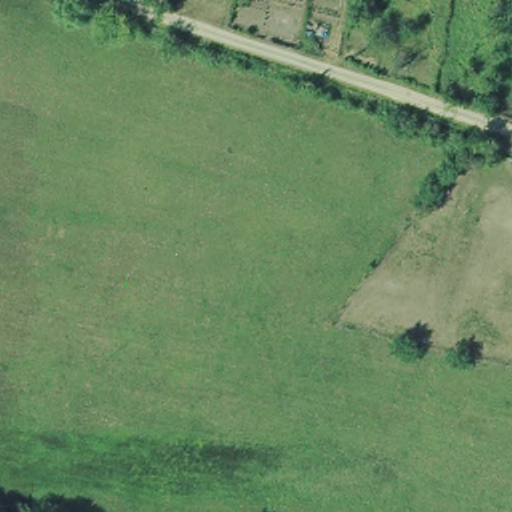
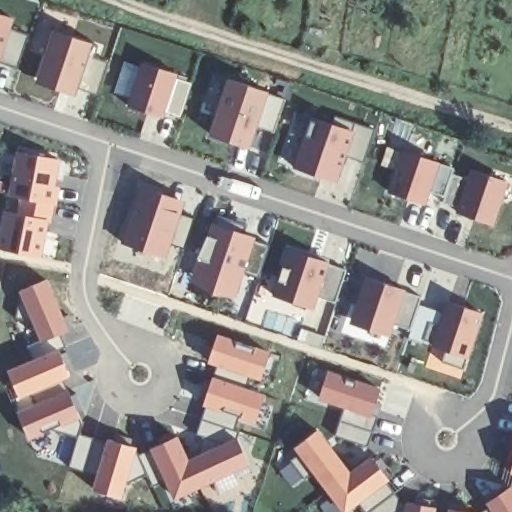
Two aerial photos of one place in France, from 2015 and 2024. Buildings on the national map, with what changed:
new [(9,31),(27,37),(15,73),(0,67),(0,13),(12,17),(9,31)]
new [(97,46),(94,57),(106,61),(94,102),(35,84),(50,31),(97,46)]
new [(176,72),(174,79),(191,83),(180,117),(165,112),(163,119),(127,107),(141,61),(176,72)]
new [(285,98),(274,133),(255,129),(246,153),(204,141),(225,80),(285,98)]
new [(362,161),(346,155),(337,183),(300,170),(316,120),(347,130),(350,123),(375,131),(362,161)]
new [(52,202),(42,262),(0,253),(0,214),(2,206),(17,210),(20,199),(5,193),(15,141),(62,147),(52,202)]
new [(451,167),(442,196),(430,191),(425,206),(387,191),(402,150),(451,167)]
new [(508,181),(492,227),(454,215),(467,167),(508,181)]
new [(180,200),(177,210),(195,217),(184,251),(164,247),(164,254),(122,243),(139,187),(180,200)]
new [(269,241),(259,275),(243,268),(231,300),(187,283),(209,221),(269,241)]
new [(347,267),(338,302),(317,297),(312,310),(268,297),(285,244),(347,267)]
new [(420,294),(410,330),(392,324),(387,337),(347,324),(364,276),(420,294)]
new [(49,278),(69,331),(41,342),(21,292),(49,278)]
new [(482,312),(466,361),(429,347),(445,302),(482,312)]
new [(89,334),(99,351),(97,360),(75,372),(64,345),(89,334)]
new [(219,334),(269,352),(263,377),(207,362),(219,334)]
new [(58,351),(71,376),(17,398),(7,371),(58,351)]
new [(377,385),(368,413),(375,413),(366,445),(335,433),(342,406),(317,397),(324,370),(377,385)]
new [(256,421),(204,407),(214,377),(264,394),(256,421)]
new [(67,390),(80,417),(28,437),(19,412),(67,390)]
new [(399,512),(367,512),(360,502),(348,512),(336,512),(312,475),(304,481),(289,462),(295,457),(290,448),(317,427),(347,471),(372,453),(407,502),(436,511),(435,512),(403,512),(403,510),(399,512)]
new [(177,436),(191,457),(235,437),(250,465),(174,497),(149,450),(177,436)]
new [(137,447),(120,497),(94,491),(107,438),(137,447)]
new [(507,471),(512,451),(512,472),(507,471)]
new [(484,512),(486,511),(482,506),(510,488),(512,478),(512,512),(484,512)]
new [(452,512),(445,512),(445,511),(452,512)]

